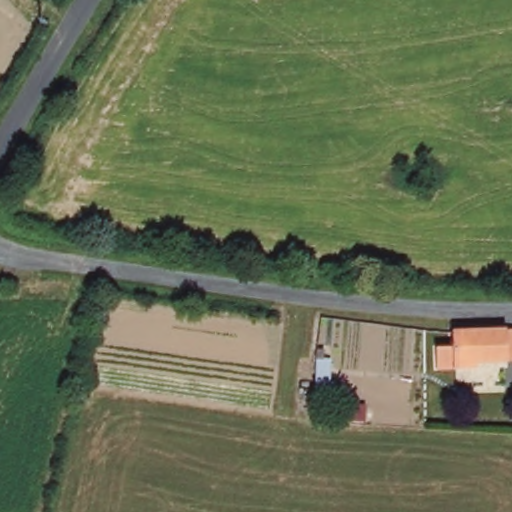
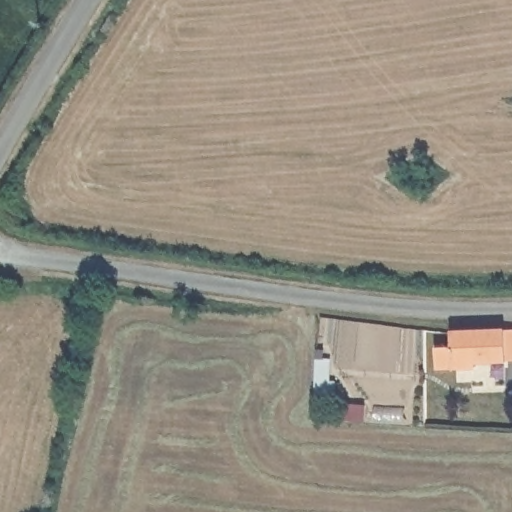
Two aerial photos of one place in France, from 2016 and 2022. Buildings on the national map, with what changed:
unchanged [(436,370),(435,348),(452,347),(450,330),(502,329),(512,328),(512,360),(503,360),(476,361),(476,369),(436,370)]

